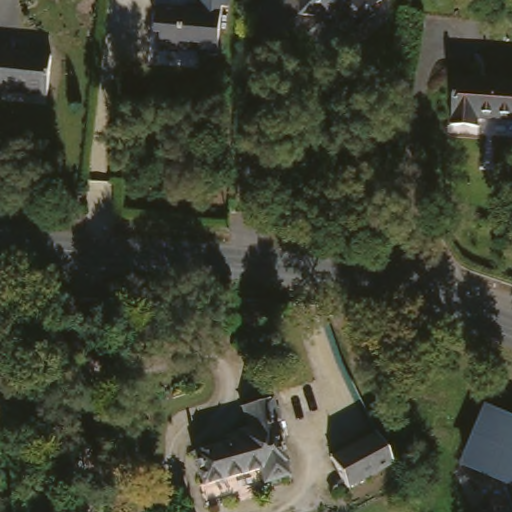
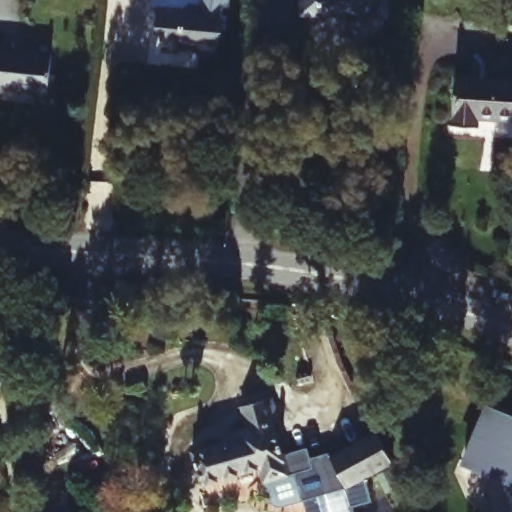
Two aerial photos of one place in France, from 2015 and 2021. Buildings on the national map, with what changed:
unchanged [(201,2),(196,1),(197,0),(227,0),(225,14),(221,13),(215,66),(192,63),(193,55),(175,52),(174,60),(157,58),(159,37),(151,36),(154,8),(176,11),(187,10),(200,11),(201,2)]
unchanged [(370,13),(344,41),(332,30),(321,29),(314,17),(298,16),(299,0),(377,0),(367,10),(370,13)]
unchanged [(0,95),(0,43),(13,45),(12,55),(56,62),(49,102),(0,95)]
unchanged [(481,140),(455,139),(458,88),(512,88),(512,130),(481,129),(481,140)]
unchanged [(2,375),(3,394),(0,394),(0,376),(2,375)]
unchanged [(253,486),(250,472),(195,483),(187,448),(226,439),(225,431),(238,428),(233,409),(264,402),(269,422),(264,423),(279,481),(253,486)]
unchanged [(470,455),(495,406),(512,415),(512,504),(503,472),(470,455)]
unchanged [(334,455),(383,434),(397,466),(349,487),(334,455)]
new [(308,447),(311,458),(333,451),(334,455),(349,487),(365,480),(372,502),(352,507),(353,512),(306,512),(302,501),(281,506),(272,501),(267,483),(279,481),(272,455),(308,447)]

